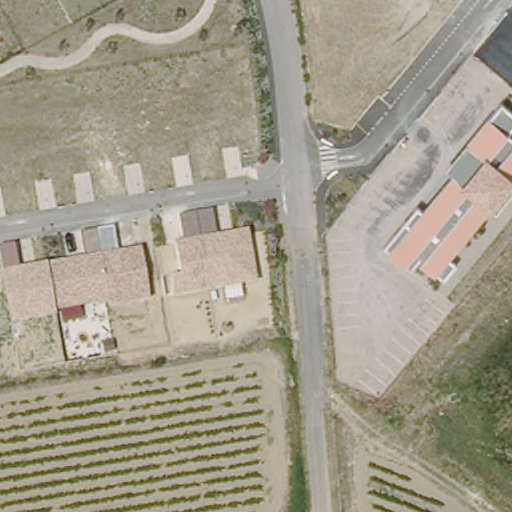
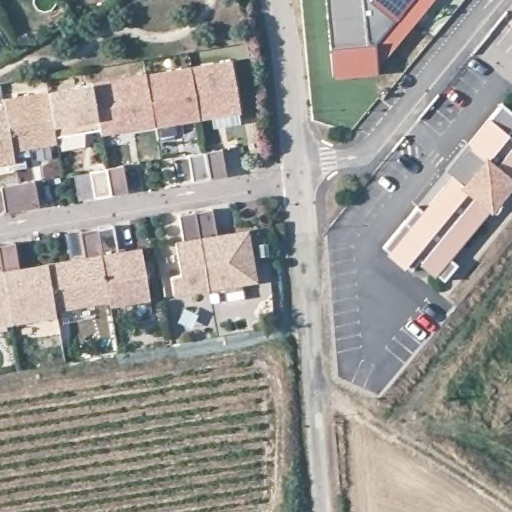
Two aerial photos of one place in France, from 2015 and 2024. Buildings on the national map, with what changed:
new [(373,70),(369,74),(330,76),(324,0),(410,0),(371,47),(373,70)]
new [(430,0),(373,70),(371,47),(410,0),(430,0)]
new [(229,64),(237,112),(196,119),(188,70),(229,64)]
new [(144,76),(144,78),(188,70),(196,119),(152,126),(152,125),(142,127),(98,134),(97,131),(90,86),(134,78),(144,76)]
new [(90,86),(97,131),(51,140),(44,95),(90,86)]
new [(0,97),(43,91),(44,95),(51,140),(6,146),(0,107),(0,97)]
unchanged [(417,205),(423,211),(452,175),(445,169),(501,103),(512,111),(512,128),(508,134),(512,137),(512,193),(496,214),(488,208),(449,257),(458,264),(442,281),(417,264),(411,270),(382,249),(417,205)]
new [(0,159),(0,107),(8,158),(0,159)]
new [(218,151),(223,177),(206,180),(190,183),(185,156),(202,153),(218,151)]
new [(120,166),(125,194),(108,196),(91,200),(87,172),(103,170),(120,166)]
new [(35,180),(40,206),(22,209),(5,212),(1,185),(18,183),(35,180)]
unchanged [(212,208),(216,235),(250,230),(259,280),(174,296),(170,277),(182,275),(175,242),(184,241),(178,214),(212,208)]
unchanged [(19,269),(83,257),(80,231),(115,226),(118,250),(140,248),(149,301),(112,307),(110,301),(80,306),(82,318),(60,324),(58,317),(11,326),(0,248),(0,245),(15,243),(19,269)]
new [(0,327),(0,248),(11,326),(0,327)]

